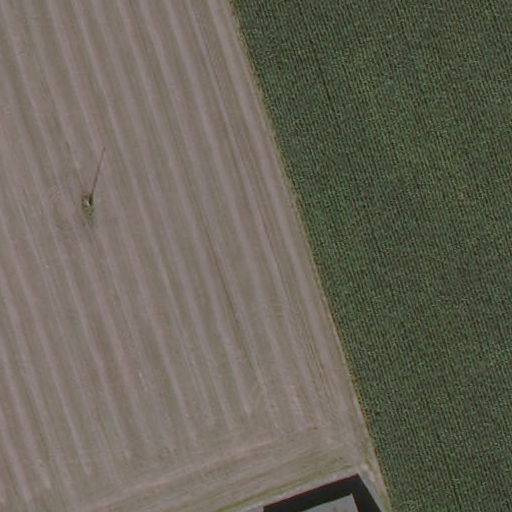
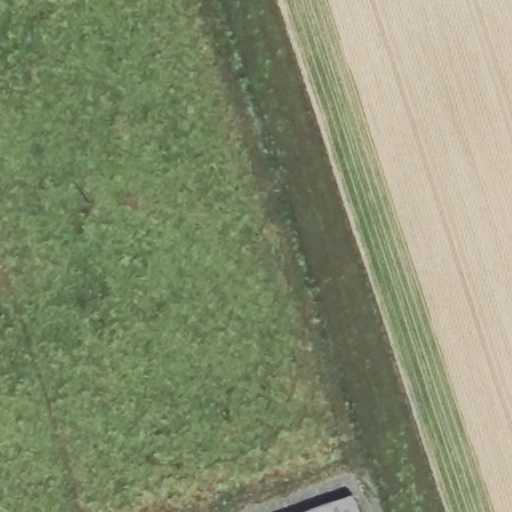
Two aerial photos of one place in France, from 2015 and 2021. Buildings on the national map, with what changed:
unchanged [(351,512),(339,512),(349,507),(351,512)]

